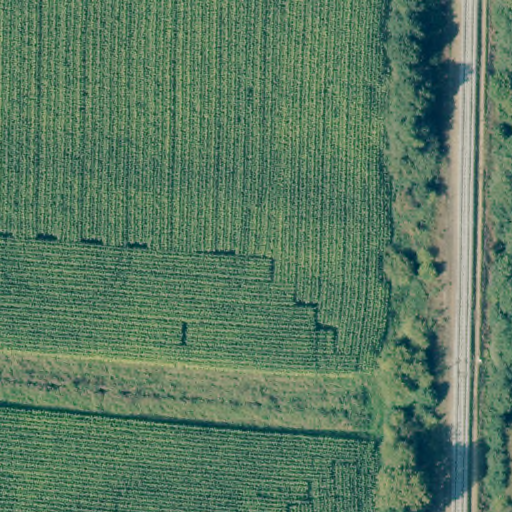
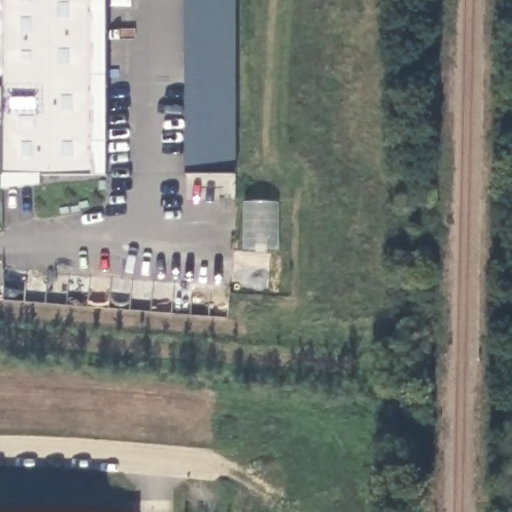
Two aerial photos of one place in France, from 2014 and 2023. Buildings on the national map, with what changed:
new [(41,175),(42,186),(2,190),(3,123),(0,123),(0,88),(5,88),(6,78),(0,78),(0,0),(106,0),(106,177),(41,175)]
unchanged [(186,0),(236,0),(237,175),(188,175),(186,0)]

